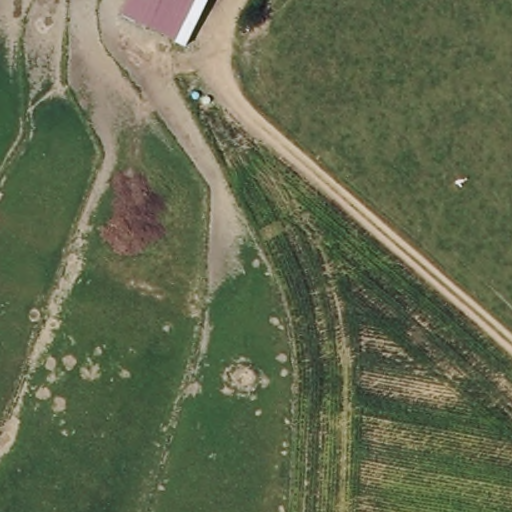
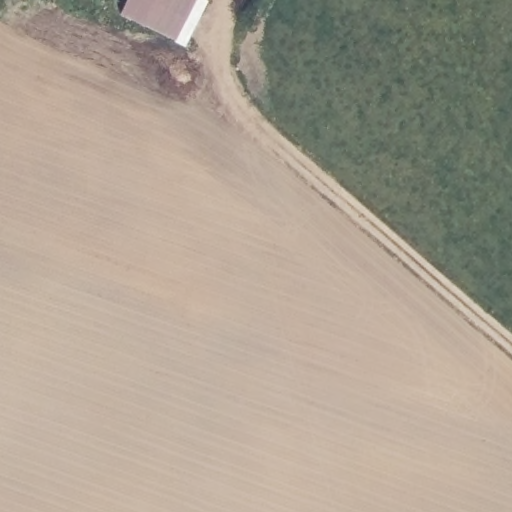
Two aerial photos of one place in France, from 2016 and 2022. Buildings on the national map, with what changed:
unchanged [(119,15),(126,0),(191,0),(171,41),(119,15)]

